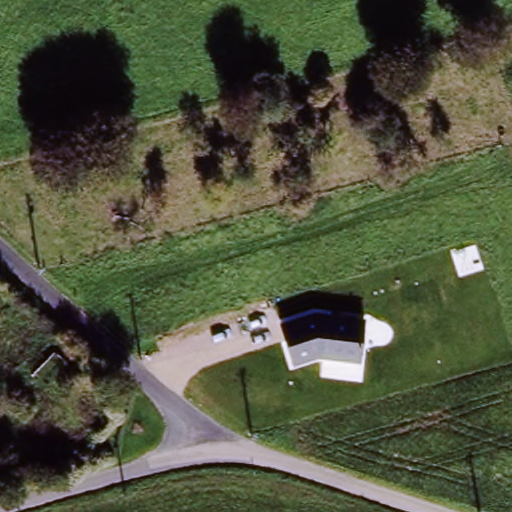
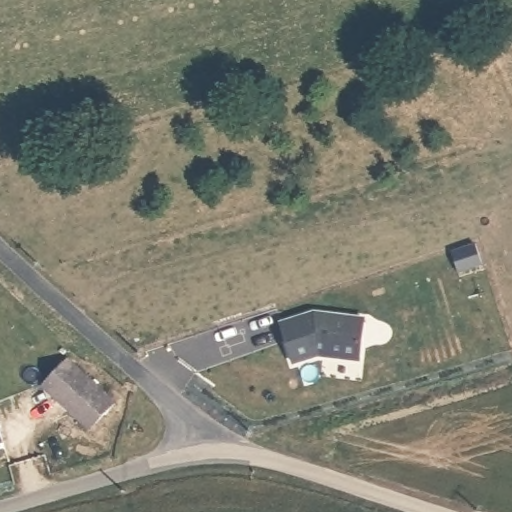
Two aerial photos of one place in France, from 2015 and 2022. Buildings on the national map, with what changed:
unchanged [(314,313),(366,319),(361,363),(320,358),(292,364),(281,323),(314,313)]
new [(114,402),(90,428),(41,384),(65,357),(114,402)]
new [(2,440),(0,440),(0,435),(2,440)]

